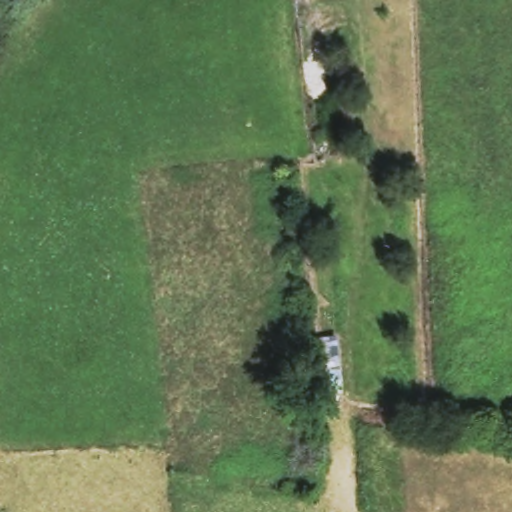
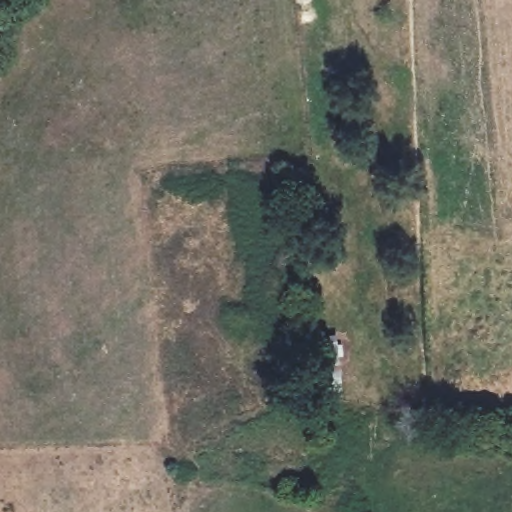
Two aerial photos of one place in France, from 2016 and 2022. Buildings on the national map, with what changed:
unchanged [(339,349),(345,397),(319,397),(316,322),(338,323),(339,349)]

